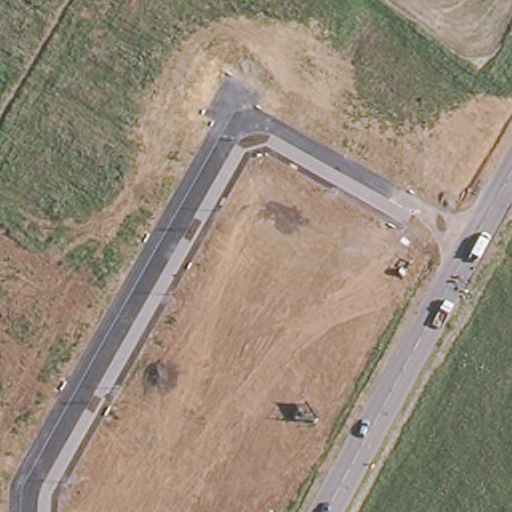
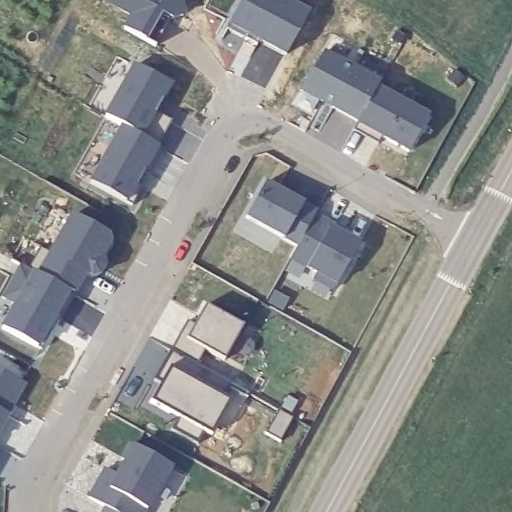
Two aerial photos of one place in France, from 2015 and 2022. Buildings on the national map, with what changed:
new [(181,14),(169,16),(153,46),(122,28),(129,15),(104,0),(179,0),(178,1),(181,14)]
new [(293,0),(310,10),(284,56),(228,25),(242,0),(293,0)]
new [(321,51),(376,83),(374,87),(355,121),(329,106),(332,101),(322,96),(319,101),(299,89),(321,51)]
new [(159,116),(166,121),(152,146),(117,126),(100,116),(130,64),(165,83),(156,99),(158,99),(166,105),(159,116)]
new [(355,121),(374,87),(426,116),(406,151),(380,136),(376,144),(351,129),(354,122),(355,121)]
new [(117,126),(152,146),(158,149),(144,175),(139,172),(133,184),(138,187),(126,206),(85,183),(117,126)]
unchanged [(264,181),(315,210),(313,214),(295,245),(244,216),(264,181)]
new [(38,245),(49,251),(70,214),(105,233),(108,240),(98,257),(100,258),(101,265),(96,274),(90,275),(83,272),(72,292),(26,266),(38,245)]
new [(313,214),(334,226),(342,230),(340,234),(357,244),(332,289),(311,277),(315,272),(291,258),(289,257),(295,245),(313,214)]
new [(39,349),(0,327),(14,303),(0,295),(11,276),(24,284),(31,271),(10,259),(10,258),(73,293),(59,319),(57,317),(50,329),(39,349)]
new [(189,323),(196,327),(207,307),(245,329),(226,363),(206,352),(199,366),(173,352),(189,323)]
unchanged [(211,435),(206,432),(199,444),(174,430),(183,414),(173,408),(171,413),(153,403),(164,384),(158,380),(173,352),(199,366),(232,385),(250,396),(248,400),(229,390),(224,399),(229,402),(211,435)]
new [(11,403),(8,401),(3,411),(6,413),(0,424),(0,369),(23,382),(11,403)]
new [(107,471),(119,477),(127,463),(124,461),(133,446),(173,469),(148,512),(112,512),(106,509),(90,500),(107,471)]
unchanged [(106,509),(112,512),(105,512),(106,509)]

